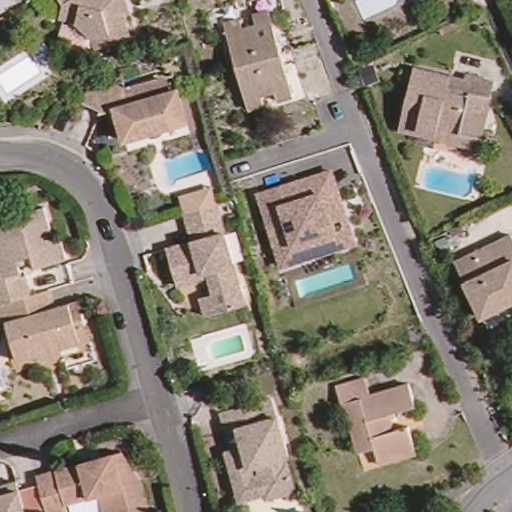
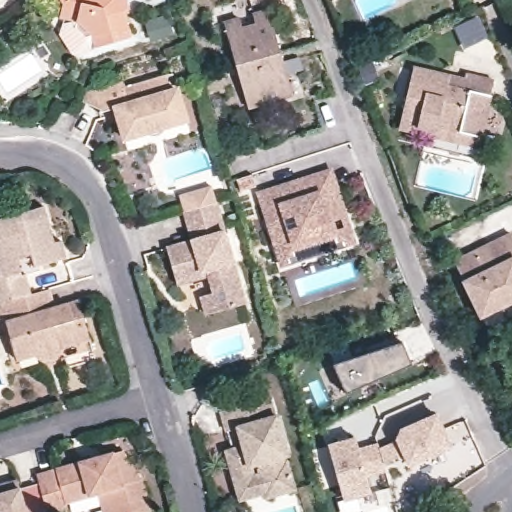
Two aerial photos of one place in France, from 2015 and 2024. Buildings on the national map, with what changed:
unchanged [(125,9),(133,36),(98,45),(94,35),(87,37),(78,23),(78,16),(62,15),(63,3),(62,0),(129,0),(131,8),(125,9)]
unchanged [(457,1),(462,11),(456,14),(451,4),(457,1)]
unchanged [(248,106),(224,21),(239,17),(253,13),(268,9),(292,94),(277,98),(264,101),(248,106)]
unchanged [(404,126),(406,117),(418,67),(455,76),(470,79),(472,74),(498,80),(486,136),(484,146),(404,126)]
unchanged [(128,138),(123,121),(121,111),(104,116),(105,111),(88,105),(92,95),(112,89),(128,84),(130,91),(162,82),(170,80),(176,95),(182,93),(190,120),(192,126),(185,127),(166,132),(160,129),(156,136),(137,141),(129,143),(128,138)]
unchanged [(353,248),(276,272),(253,194),(327,169),(353,248)]
unchanged [(213,299),(208,280),(201,282),(177,288),(167,251),(192,245),(185,215),(181,199),(188,198),(212,190),(216,206),(244,308),(218,315),(205,319),(201,301),(213,299)]
unchanged [(43,207),(55,243),(60,242),(65,257),(31,267),(27,255),(15,259),(20,275),(23,275),(29,295),(0,303),(0,218),(43,207)]
unchanged [(512,245),(512,267),(507,258),(490,267),(480,247),(506,235),(512,245)]
unchanged [(507,258),(512,267),(512,299),(477,316),(450,262),(480,247),(490,267),(507,258)]
unchanged [(78,341),(57,347),(57,353),(55,359),(50,362),(45,362),(40,360),(37,357),(35,353),(15,359),(0,306),(0,303),(29,295),(47,290),(52,309),(78,301),(85,324),(88,339),(78,341)]
new [(335,372),(401,342),(412,365),(346,395),(335,372)]
demolished [(376,415),(380,431),(390,429),(403,424),(410,448),(373,459),(369,447),(353,451),(339,403),(337,404),(332,385),(358,377),(363,392),(401,381),(409,406),(385,413),(376,415)]
unchanged [(273,401),(278,421),(281,420),(293,459),(287,461),(289,466),(291,466),(299,493),(272,501),(270,498),(244,504),(231,456),(248,451),(243,432),(231,435),(226,415),(273,401)]
new [(451,448),(410,467),(405,458),(384,467),(379,450),(397,441),(395,436),(436,417),(451,448)]
new [(367,476),(372,493),(358,497),(356,492),(343,496),(328,447),(356,439),(359,450),(379,450),(384,467),(367,476)]
unchanged [(100,493),(69,502),(70,510),(61,512),(47,512),(36,475),(122,451),(143,479),(151,512),(106,512),(100,493)]
unchanged [(16,481),(18,488),(26,512),(0,512),(0,485),(16,481)]

